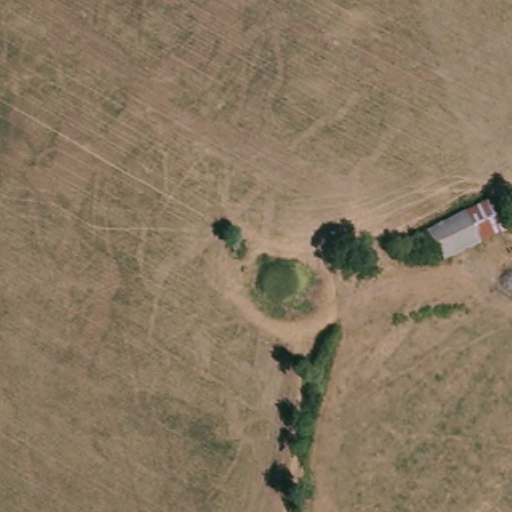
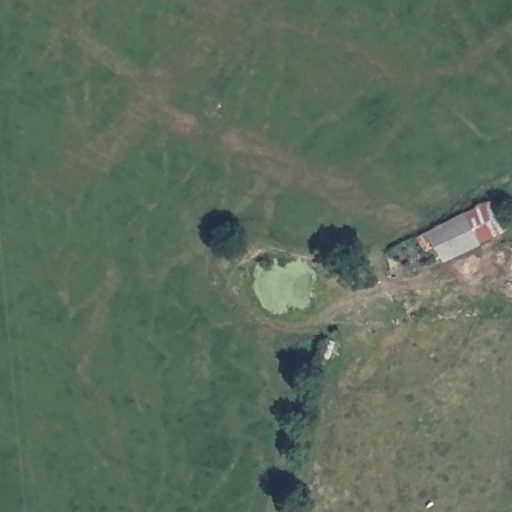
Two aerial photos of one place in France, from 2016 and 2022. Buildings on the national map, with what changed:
unchanged [(493,216),(509,213),(511,227),(503,229),(506,236),(439,260),(426,229),(463,215),(492,204),(493,216)]

